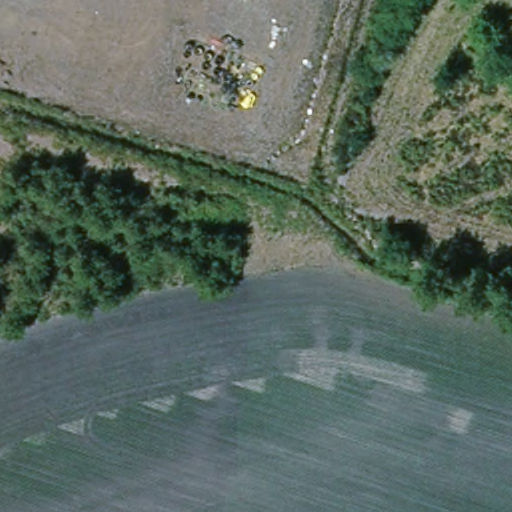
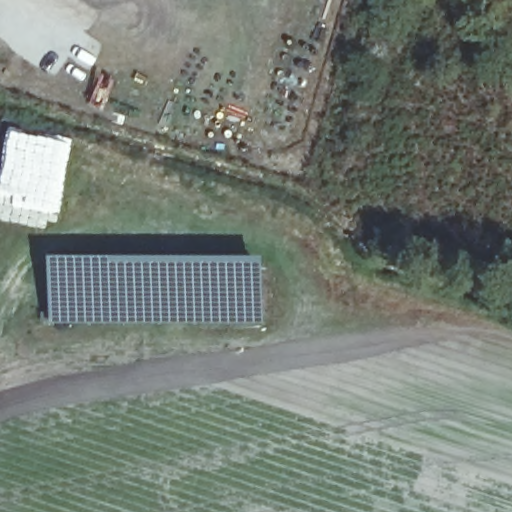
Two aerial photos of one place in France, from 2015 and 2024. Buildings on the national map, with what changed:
new [(53,322),(53,258),(268,260),(265,323),(53,322)]

